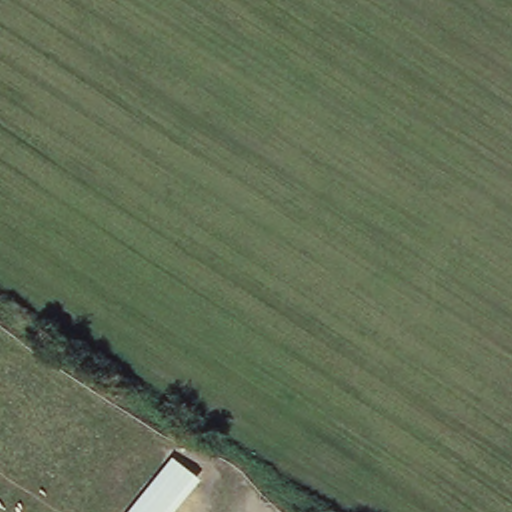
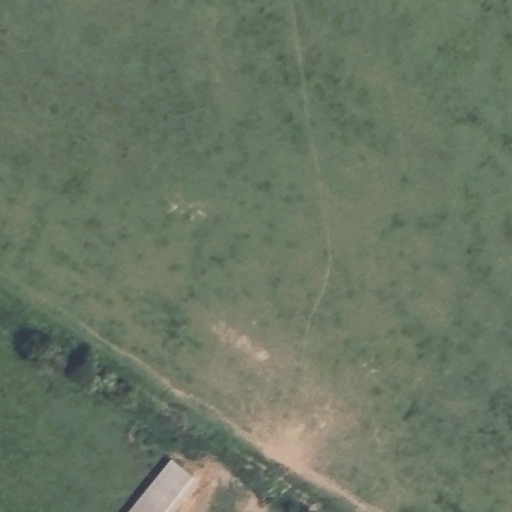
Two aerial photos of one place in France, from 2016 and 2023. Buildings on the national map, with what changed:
unchanged [(196,472),(161,512),(121,512),(170,451),(196,472)]

